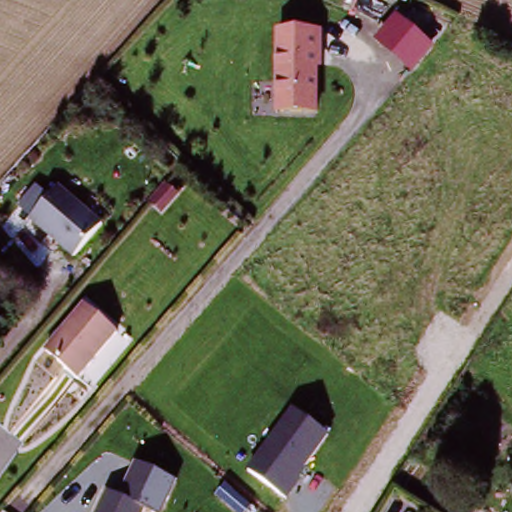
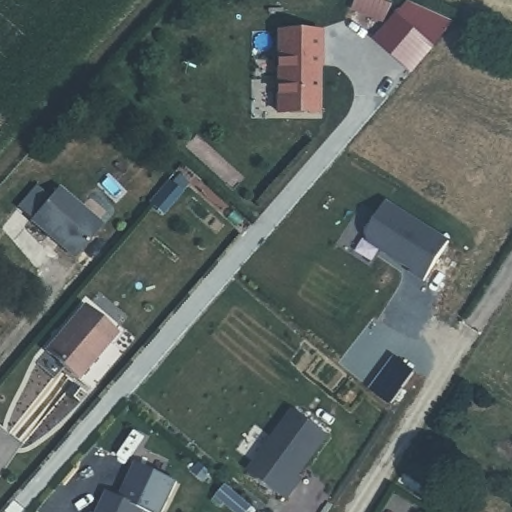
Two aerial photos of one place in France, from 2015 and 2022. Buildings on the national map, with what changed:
unchanged [(395,16),(435,48),(413,75),(373,41),(395,16)]
unchanged [(273,116),(273,30),(322,31),(322,68),(318,70),(318,116),(273,116)]
new [(168,181),(184,188),(163,207),(150,198),(168,181)]
unchanged [(65,186),(108,223),(80,257),(36,220),(65,186)]
new [(448,242),(425,282),(410,273),(412,270),(367,243),(366,236),(385,204),(448,242)]
unchanged [(48,346),(87,300),(120,328),(82,374),(48,346)]
unchanged [(293,410),(326,436),(284,496),(250,469),(293,410)]
unchanged [(177,483),(163,512),(146,512),(143,511),(117,498),(134,464),(177,483)]
unchanged [(143,511),(142,512),(95,512),(106,492),(143,511)]

